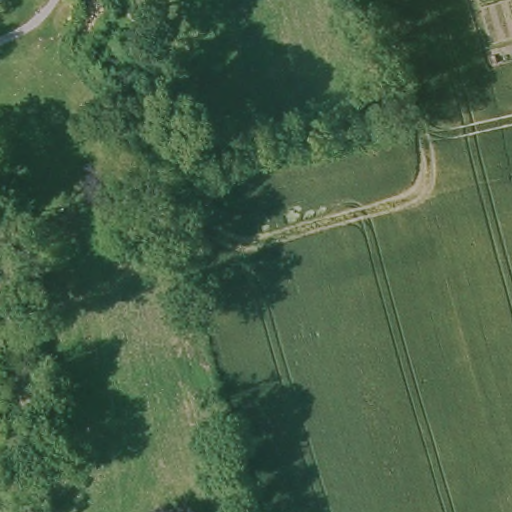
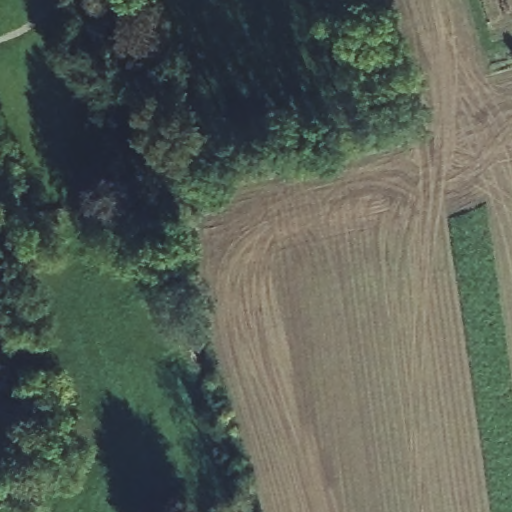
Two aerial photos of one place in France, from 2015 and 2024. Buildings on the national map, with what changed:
[]

